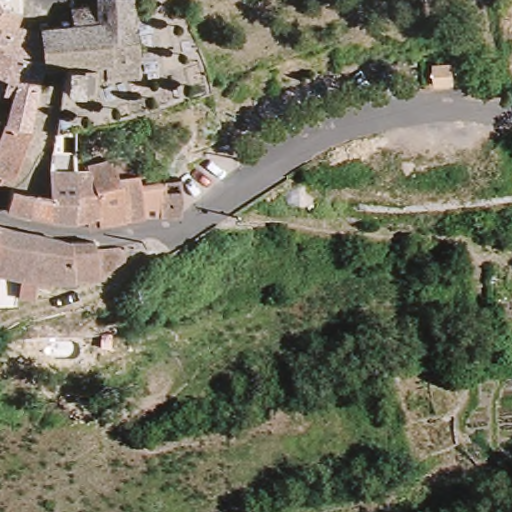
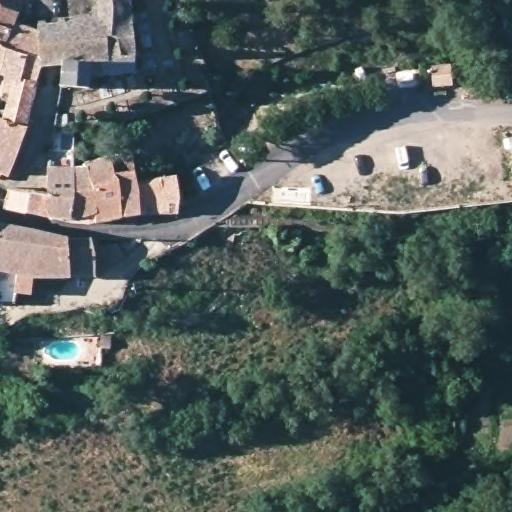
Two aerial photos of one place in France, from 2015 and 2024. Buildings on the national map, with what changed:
unchanged [(71,90),(68,67),(41,68),(40,66),(38,49),(36,27),(35,18),(40,20),(42,23),(49,22),(56,21),(56,18),(66,17),(66,3),(86,0),(131,0),(136,65),(96,72),(97,90),(71,90)]
unchanged [(8,20),(36,27),(38,49),(40,66),(34,85),(34,89),(31,101),(26,125),(11,122),(24,86),(2,81),(0,86),(0,1),(12,9),(8,20)]
unchanged [(427,64),(449,62),(451,80),(429,82),(427,64)]
unchanged [(26,125),(25,132),(21,144),(12,165),(12,167),(10,170),(5,166),(0,176),(0,119),(11,122),(26,125)]
unchanged [(32,189),(39,190),(40,180),(48,181),(52,150),(72,150),(72,163),(71,219),(47,210),(47,216),(31,212),(9,207),(12,185),(32,189)]
unchanged [(124,216),(89,219),(71,219),(72,163),(82,165),(85,161),(113,159),(134,157),(137,167),(138,172),(142,182),(162,179),(179,176),(182,199),(181,212),(160,212),(145,214),(124,216)]
unchanged [(62,275),(32,277),(29,285),(26,293),(10,291),(7,300),(0,300),(0,224),(7,224),(31,230),(44,232),(72,238),(90,238),(92,250),(110,244),(122,256),(114,261),(104,268),(96,272),(91,273),(62,275)]

